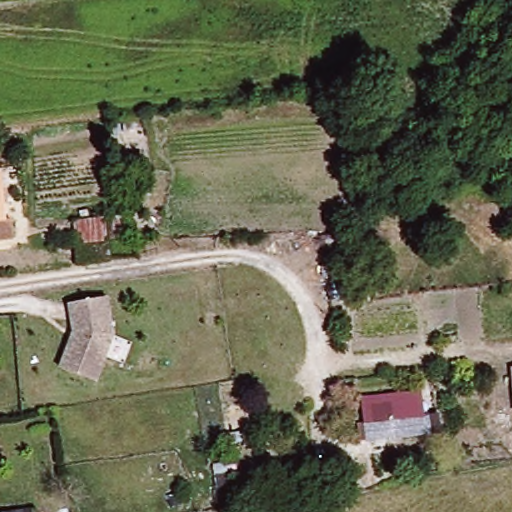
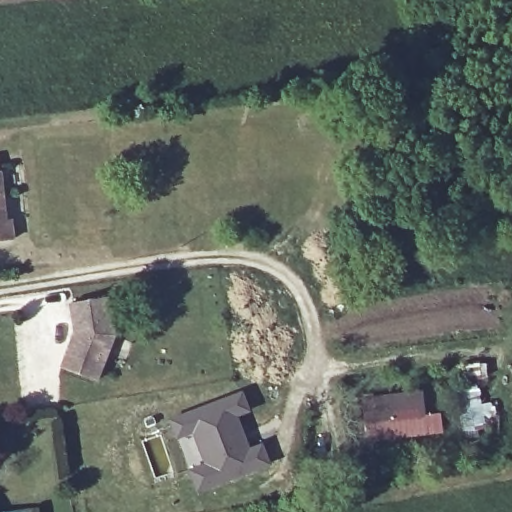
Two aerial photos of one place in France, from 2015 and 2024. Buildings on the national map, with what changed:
unchanged [(0,239),(0,184),(4,213),(14,211),(18,236),(0,239)]
unchanged [(111,296),(117,335),(116,336),(99,380),(63,366),(73,342),(78,330),(73,302),(111,296)]
unchanged [(448,434),(369,442),(363,395),(427,387),(430,413),(445,411),(448,434)]
new [(267,462),(241,471),(193,490),(185,469),(202,463),(190,430),(174,435),(167,418),(240,391),(247,409),(234,413),(239,427),(234,429),(243,451),(260,445),(267,462)]

